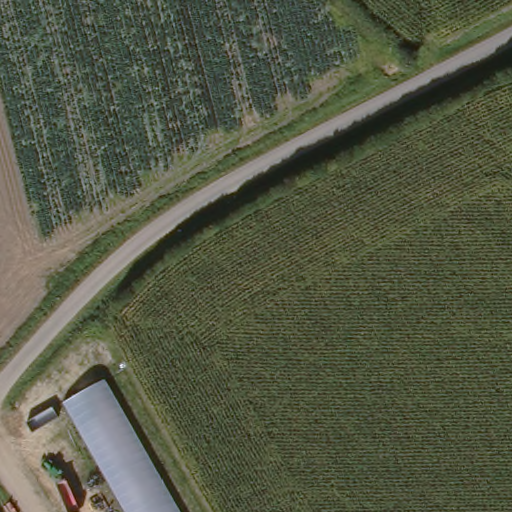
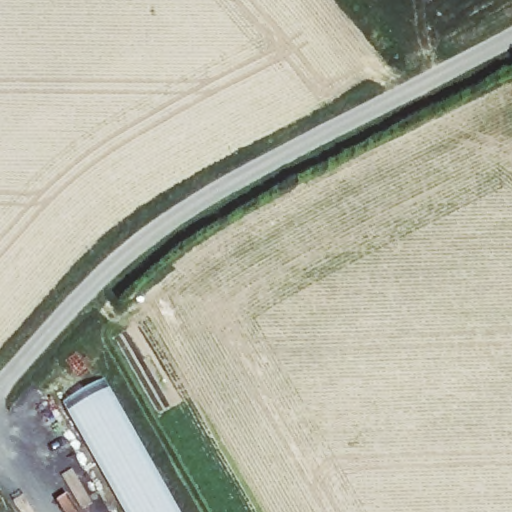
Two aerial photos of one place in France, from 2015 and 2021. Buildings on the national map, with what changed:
unchanged [(179,512),(121,512),(60,402),(103,379),(179,512)]

